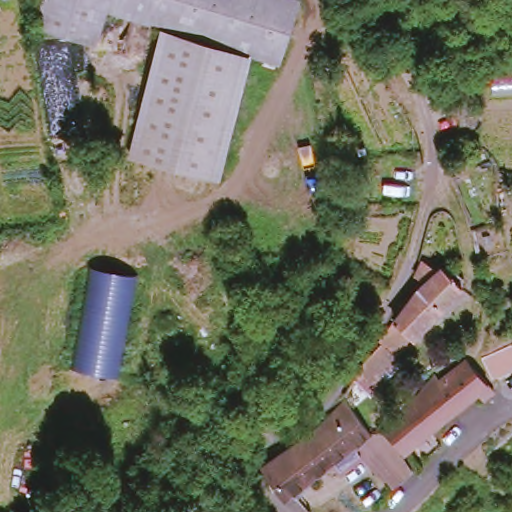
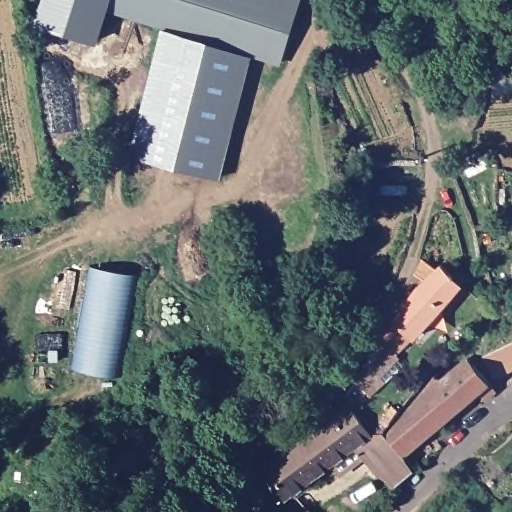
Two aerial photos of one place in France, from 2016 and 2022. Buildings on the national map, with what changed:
unchanged [(49,0),(299,0),(280,63),(251,54),(213,187),(126,162),(165,29),(110,13),(99,48),(40,31),(49,0)]
unchanged [(350,382),(387,318),(435,263),(456,284),(412,335),(384,367),(390,373),(365,395),(350,382)]
unchanged [(135,275),(116,378),(74,372),(92,269),(135,275)]
unchanged [(512,366),(485,372),(481,348),(512,340),(512,366)]
unchanged [(383,437),(420,397),(416,393),(432,378),(436,383),(462,358),(492,393),(482,401),(474,392),(441,422),(402,457),(383,437)]
unchanged [(293,499),(290,494),(281,501),(261,473),(260,469),(262,465),(265,461),(270,456),(345,406),(370,436),(378,432),(383,437),(402,457),(405,460),(415,473),(393,496),(380,478),(377,480),(361,461),(339,477),(330,465),(303,485),(306,489),(293,499)]

